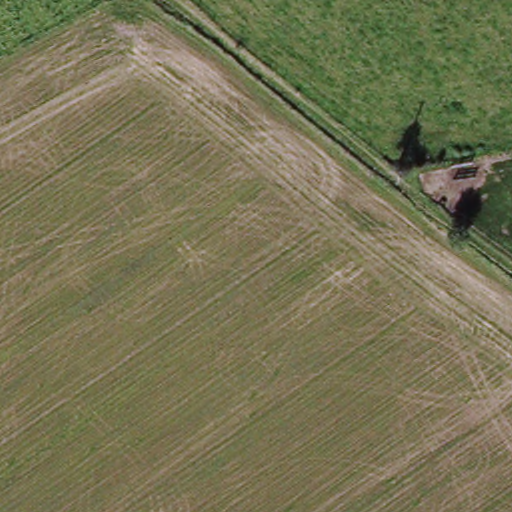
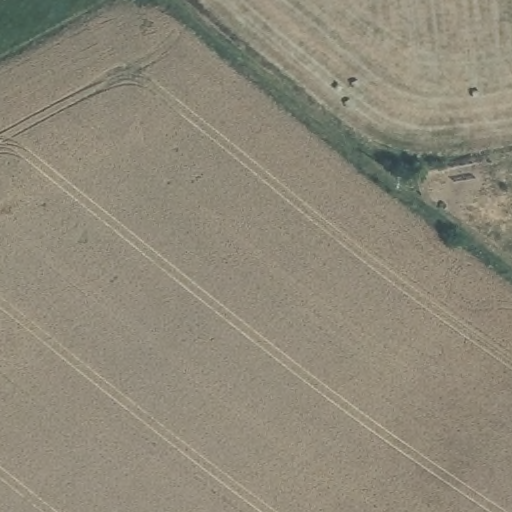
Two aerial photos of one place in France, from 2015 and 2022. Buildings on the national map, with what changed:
[]

